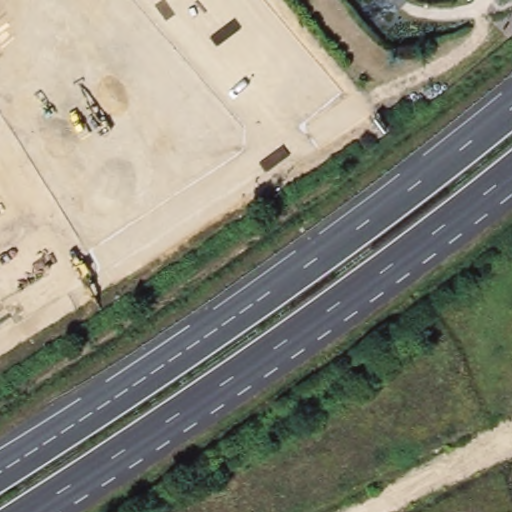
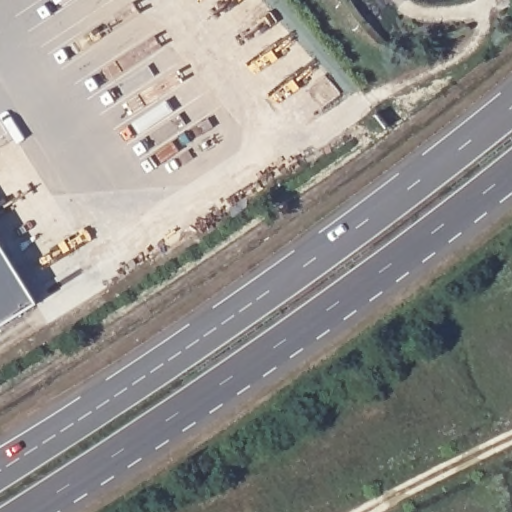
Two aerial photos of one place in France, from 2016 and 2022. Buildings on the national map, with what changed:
new [(34,301),(0,322),(0,246),(34,301)]

